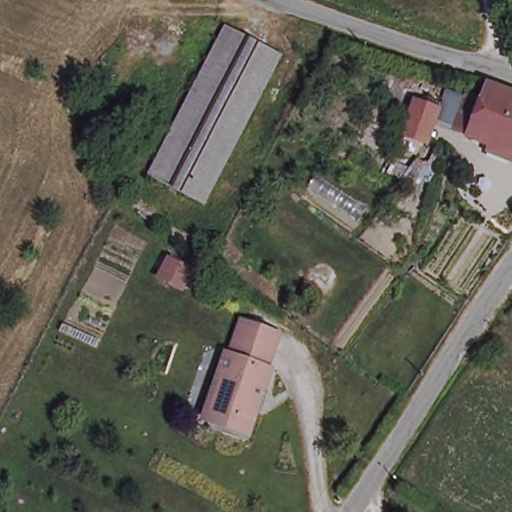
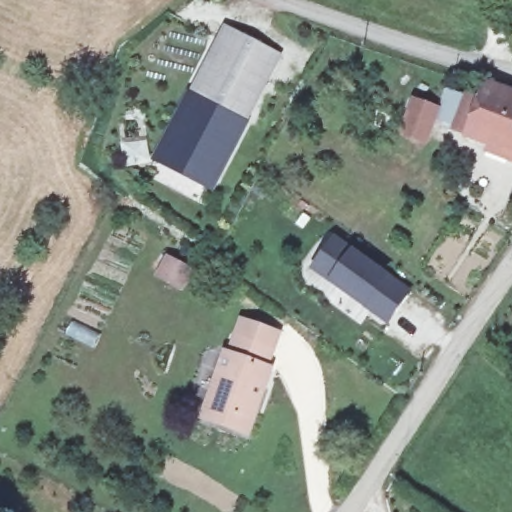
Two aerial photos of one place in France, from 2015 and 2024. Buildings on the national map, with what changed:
unchanged [(224,22),(278,50),(202,202),(146,174),(224,22)]
unchanged [(484,102),(492,84),(512,90),(512,158),(490,150),(493,139),(473,131),(484,102)]
unchanged [(484,102),(473,131),(442,120),(453,91),(484,102)]
unchanged [(431,139),(407,130),(420,97),(443,106),(431,139)]
new [(332,235),(352,248),(387,273),(410,292),(386,326),(363,308),(327,282),(308,270),(332,235)]
unchanged [(162,254),(195,266),(185,291),(150,280),(162,254)]
unchanged [(245,324),(282,336),(276,353),(271,370),(275,372),(254,436),(210,421),(230,358),(233,360),(240,341),(245,324)]

